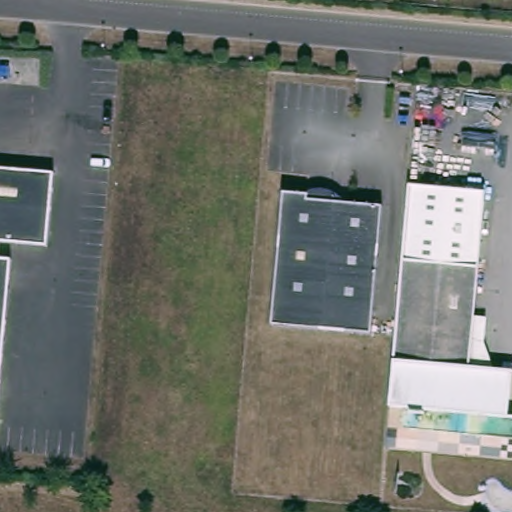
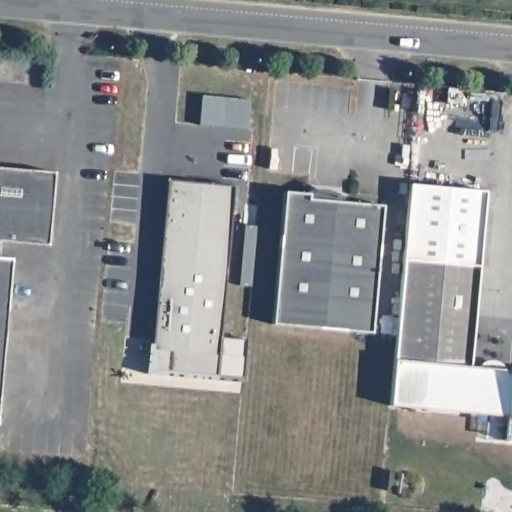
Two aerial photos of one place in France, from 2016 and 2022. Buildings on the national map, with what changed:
unchanged [(49,248),(0,243),(0,169),(55,173),(49,248)]
new [(167,181),(234,187),(217,385),(166,380),(166,379),(150,378),(152,358),(167,181)]
unchanged [(411,181),(485,187),(480,264),(405,262),(411,181)]
unchanged [(371,333),(272,324),(283,193),(308,195),(312,192),(316,191),(321,190),(326,190),(330,191),(333,193),(337,195),(340,198),(341,200),(341,204),(383,208),(371,333)]
unchanged [(0,396),(0,260),(12,260),(0,396)]
unchanged [(473,366),(512,368),(512,419),(391,407),(405,262),(480,264),(473,366)]

